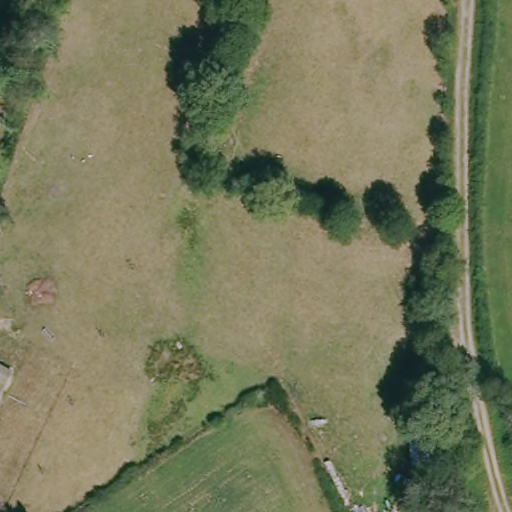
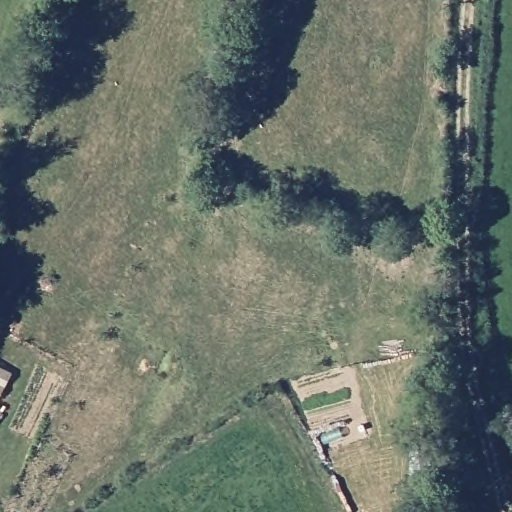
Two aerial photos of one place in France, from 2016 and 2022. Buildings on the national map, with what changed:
unchanged [(10,372),(0,392),(0,367),(10,372)]

